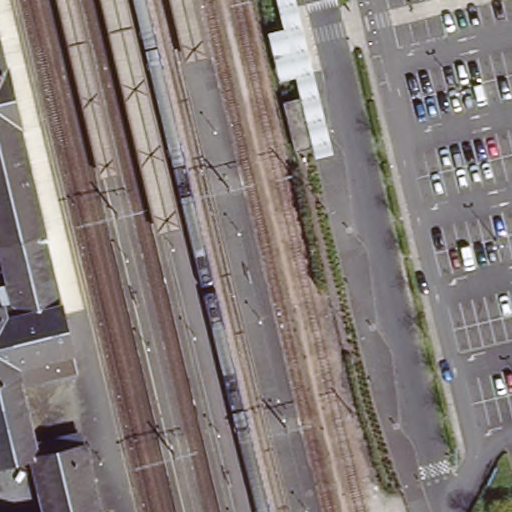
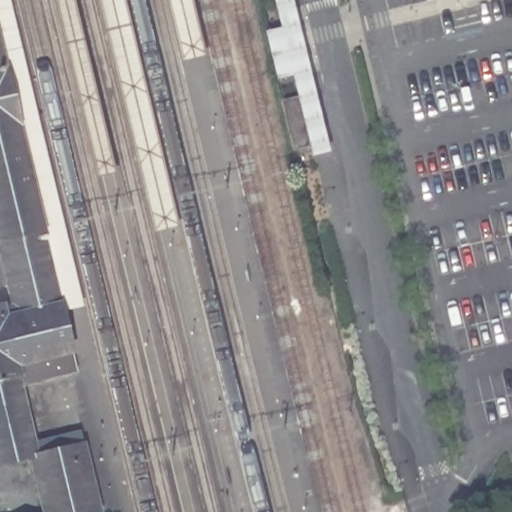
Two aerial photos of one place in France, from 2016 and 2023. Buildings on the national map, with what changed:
unchanged [(67,310),(81,375),(26,387),(40,448),(87,441),(101,512),(45,512),(35,465),(0,471),(0,285),(1,285),(0,282),(0,245),(0,0),(10,0),(86,305),(67,310)]
unchanged [(284,29),(277,0),(295,0),(333,153),(315,157),(312,147),(295,152),(282,101),(300,97),(295,76),(279,80),(267,32),(284,29)]

